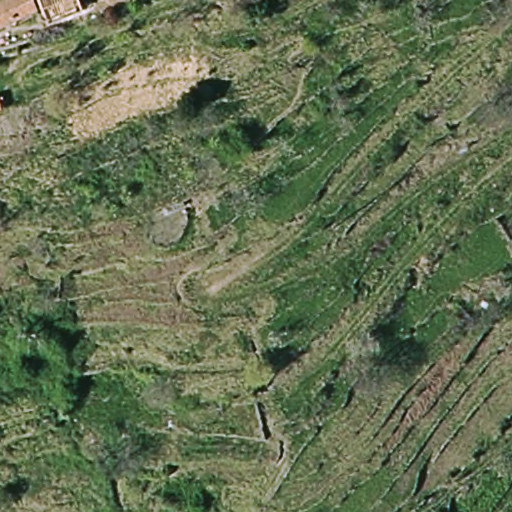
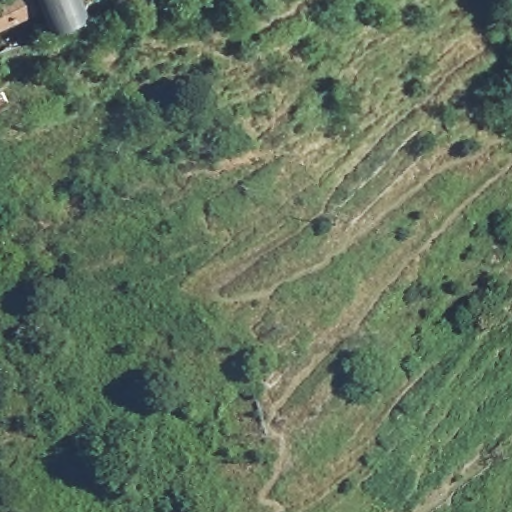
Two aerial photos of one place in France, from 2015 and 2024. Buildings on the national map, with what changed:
unchanged [(4,0),(35,0),(39,10),(0,28),(0,2),(4,0)]
new [(52,28),(39,0),(79,0),(85,13),(52,28)]

